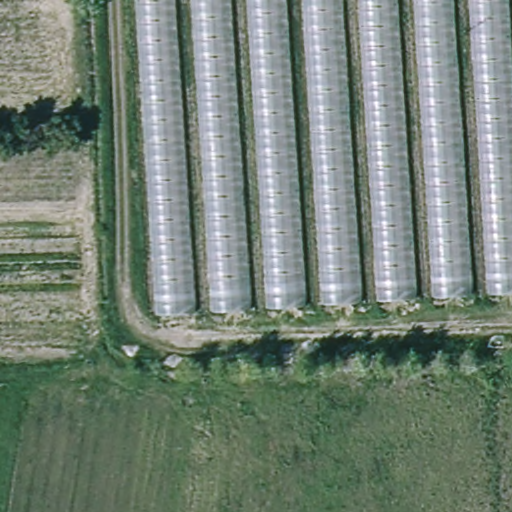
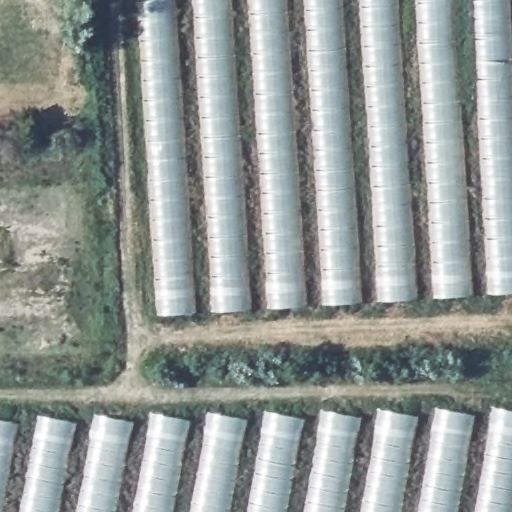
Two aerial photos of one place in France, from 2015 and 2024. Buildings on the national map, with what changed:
unchanged [(133,0),(512,0),(512,289),(154,313),(133,0)]
new [(38,425),(40,415),(95,426),(99,414),(153,423),(155,412),(209,422),(211,412),(266,423),(269,412),(322,422),(325,410),(380,420),(382,409),(437,418),(438,407),(494,418),(497,408),(512,411),(512,512),(0,512),(0,418),(38,425)]

